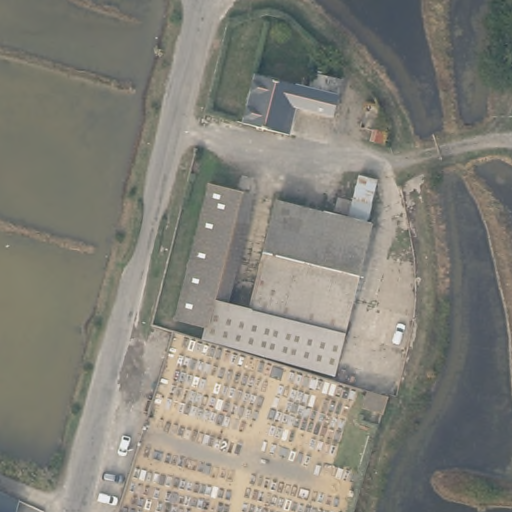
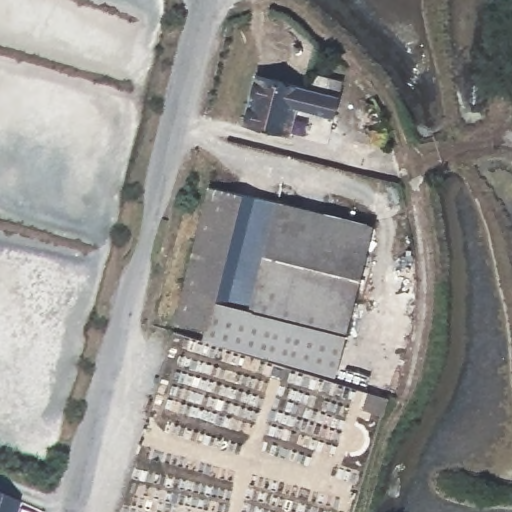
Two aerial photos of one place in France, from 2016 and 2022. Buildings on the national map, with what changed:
unchanged [(337,81),(327,119),(290,109),(283,136),(238,124),(251,75),(302,89),(307,73),(337,81)]
unchanged [(372,225),(328,370),(197,332),(200,321),(172,314),(204,180),(234,187),(210,294),(249,305),(281,198),(372,225)]
unchanged [(390,396),(386,413),(380,410),(366,406),(371,390),(390,396)]
unchanged [(17,501),(14,512),(0,512),(0,493),(17,501)]

